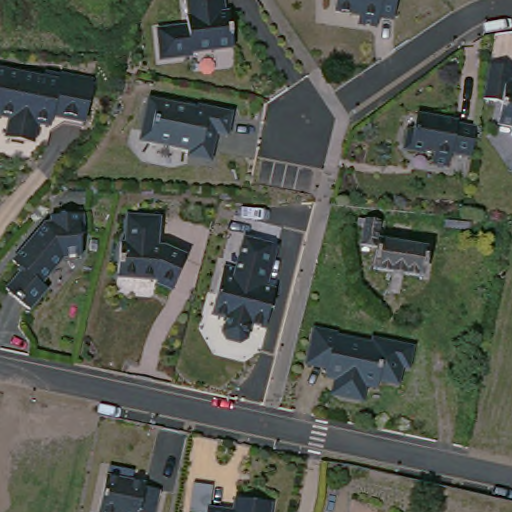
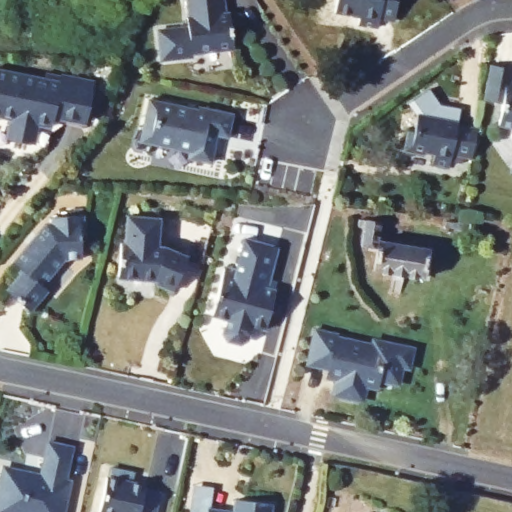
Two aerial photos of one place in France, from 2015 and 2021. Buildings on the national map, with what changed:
unchanged [(219,9),(220,20),(226,19),(229,55),(188,59),(188,62),(158,65),(154,35),(185,32),(184,23),(186,23),(185,0),(221,0),(222,9),(219,9)]
unchanged [(374,24),(373,33),(353,31),(354,21),(329,18),(332,0),(393,0),(389,26),(374,24)]
unchanged [(510,66),(506,84),(512,85),(512,142),(506,133),(508,125),(493,121),(497,100),(478,96),(484,61),(510,66)]
unchanged [(51,121),(49,131),(36,130),(33,146),(3,140),(6,120),(0,118),(0,70),(60,79),(62,74),(91,81),(81,127),(51,121)]
unchanged [(223,143),(209,140),(206,151),(209,151),(206,169),(184,164),(185,158),(144,149),(138,139),(145,105),(193,115),(194,113),(228,120),(223,143)]
unchanged [(466,160),(446,156),(444,169),(426,165),(428,155),(419,153),(419,156),(404,153),(400,146),(403,131),(408,133),(412,115),(452,123),(451,126),(471,130),(466,160)]
unchanged [(48,215),(63,214),(79,212),(81,232),(78,232),(79,255),(61,257),(46,275),(39,283),(43,286),(45,288),(41,293),(34,302),(28,309),(22,304),(4,288),(14,277),(18,271),(18,266),(10,259),(43,222),(49,221),(48,215)]
unchanged [(125,219),(153,221),(150,248),(158,249),(159,249),(180,259),(166,292),(150,286),(148,285),(149,283),(116,281),(113,281),(114,247),(119,247),(120,219),(125,219)]
unchanged [(446,230),(447,224),(470,226),(470,232),(446,230)]
unchanged [(425,284),(375,276),(378,254),(360,251),(363,234),(356,232),(358,226),(380,229),(379,247),(429,256),(425,284)]
demolished [(441,234),(441,229),(465,231),(465,237),(441,234)]
unchanged [(249,331),(246,345),(238,350),(225,346),(220,339),(224,325),(209,321),(221,272),(233,275),(241,244),(269,251),(258,292),(272,296),(262,334),(249,331)]
unchanged [(409,371),(402,369),(398,387),(377,383),(375,391),(365,389),(363,403),(331,395),(334,381),(324,378),(326,370),(306,365),(314,330),(373,343),(374,338),(413,347),(409,371)]
new [(29,475),(29,474),(39,476),(46,443),(70,448),(63,482),(66,483),(60,512),(0,512),(0,479),(2,469),(29,475)]
unchanged [(139,485),(138,487),(154,490),(150,512),(93,512),(100,477),(139,485)]
unchanged [(268,500),(267,512),(205,512),(206,508),(233,510),(234,497),(268,500)]

